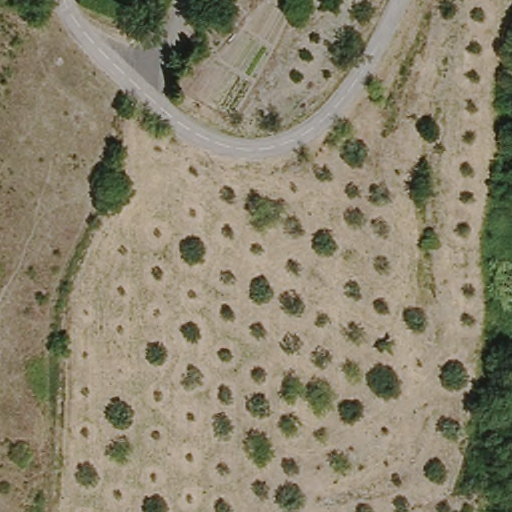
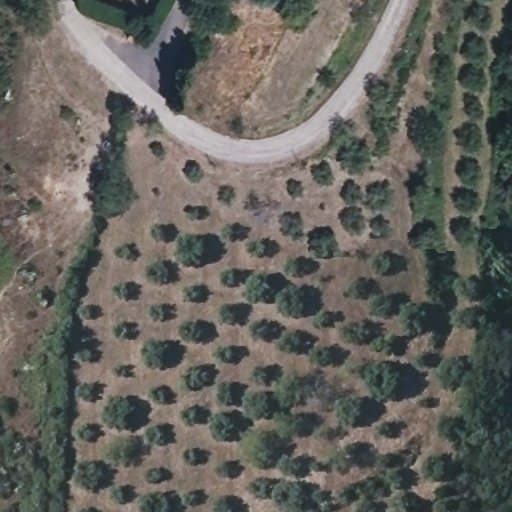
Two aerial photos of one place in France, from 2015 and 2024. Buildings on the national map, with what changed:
unchanged [(135,34),(116,34),(116,15),(135,15),(135,34)]

